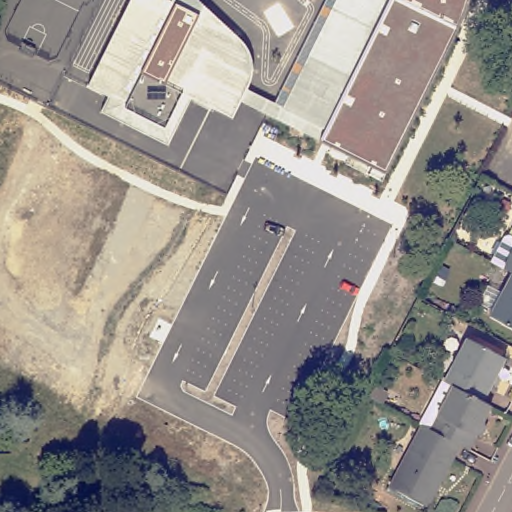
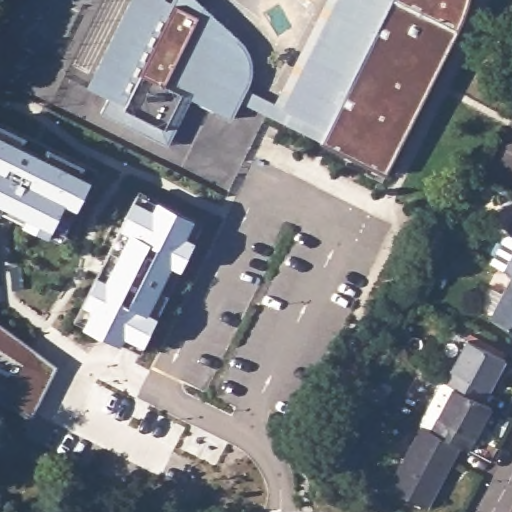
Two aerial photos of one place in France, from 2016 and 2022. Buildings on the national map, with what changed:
unchanged [(108,93),(87,85),(129,0),(198,0),(244,44),(251,56),(252,71),(250,82),(247,89),(240,102),(232,117),(190,97),(168,145),(98,112),(108,93)]
unchanged [(311,135),(240,102),(247,89),(276,102),(326,0),(392,0),(323,139),(311,135)]
unchanged [(387,172),(323,139),(392,0),(468,0),(460,21),(387,172)]
new [(25,136),(20,142),(45,152),(47,147),(82,164),(77,172),(93,179),(78,210),(65,204),(52,228),(47,238),(20,226),(24,215),(3,206),(0,213),(0,124),(25,136)]
new [(91,309),(83,306),(138,192),(196,217),(188,235),(198,240),(184,271),(179,268),(160,316),(146,346),(126,338),(122,346),(82,327),(91,309)]
unchanged [(509,237),(512,236),(512,270),(496,262),(509,237)]
unchanged [(512,283),(512,326),(495,317),(512,283)]
new [(57,365),(32,415),(0,400),(0,322),(57,365)]
unchanged [(390,487),(422,426),(410,420),(434,376),(445,382),(468,339),(506,359),(483,402),(492,407),(469,450),(460,446),(428,507),(390,487)]

